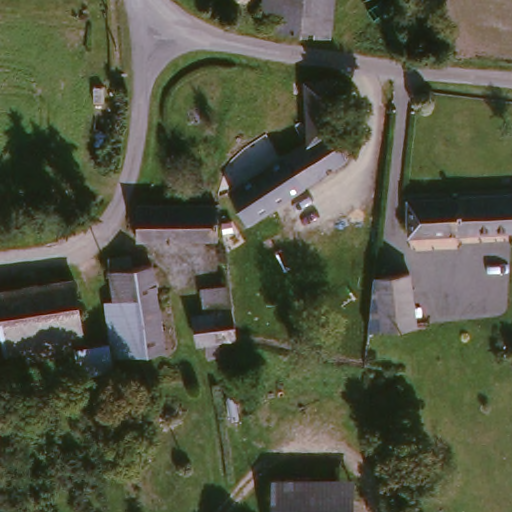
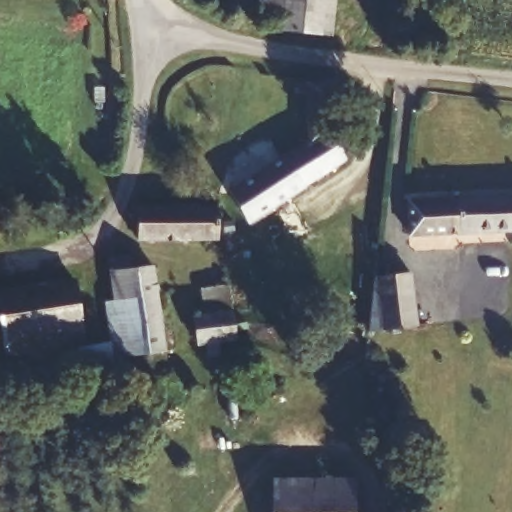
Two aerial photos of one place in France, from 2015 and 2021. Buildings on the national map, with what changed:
unchanged [(261,27),(264,0),(335,0),(331,35),(261,27)]
unchanged [(300,86),(332,84),(335,129),(328,132),(341,165),(243,225),(226,195),(303,145),(300,86)]
unchanged [(512,197),(512,235),(405,240),(403,205),(452,202),(453,201),(512,197)]
unchanged [(218,239),(138,239),(138,204),(218,205),(218,239)]
unchanged [(124,256),(127,257),(129,268),(147,265),(162,350),(109,357),(101,301),(110,299),(104,258),(124,256)]
unchanged [(383,330),(369,332),(374,283),(375,277),(377,277),(411,272),(417,325),(383,330)]
unchanged [(80,342),(67,344),(68,355),(24,362),(22,351),(1,354),(0,347),(0,293),(72,282),(80,342)]
unchanged [(197,358),(195,345),(189,316),(201,313),(197,288),(224,285),(226,309),(229,341),(202,343),(204,357),(197,358)]
unchanged [(354,480),(354,512),(273,512),(272,477),(354,480)]

